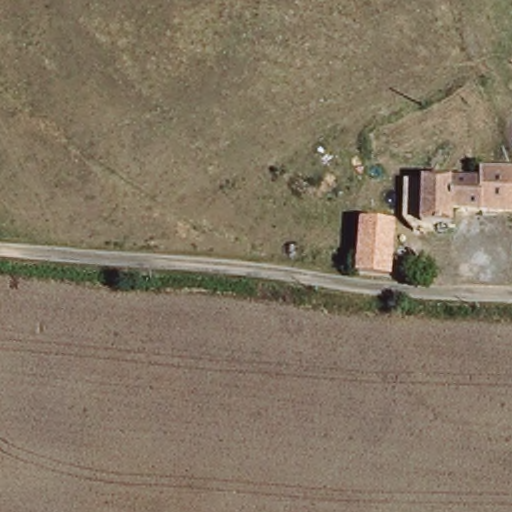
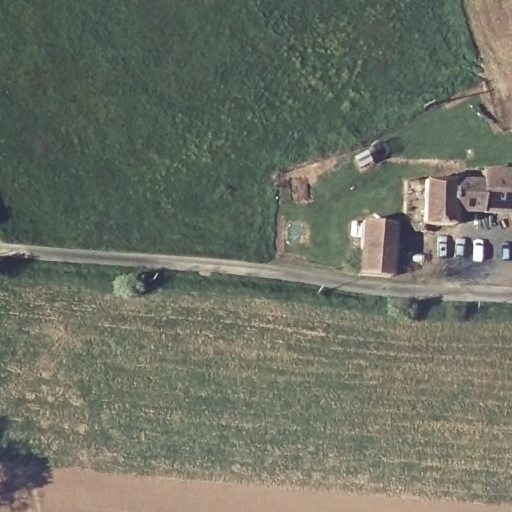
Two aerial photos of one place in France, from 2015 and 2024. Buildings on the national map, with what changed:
unchanged [(449,213),(448,227),(413,225),(415,183),(480,186),(480,174),(512,176),(512,217),(449,213)]
unchanged [(357,265),(362,222),(392,224),(388,279),(357,276),(357,265)]

